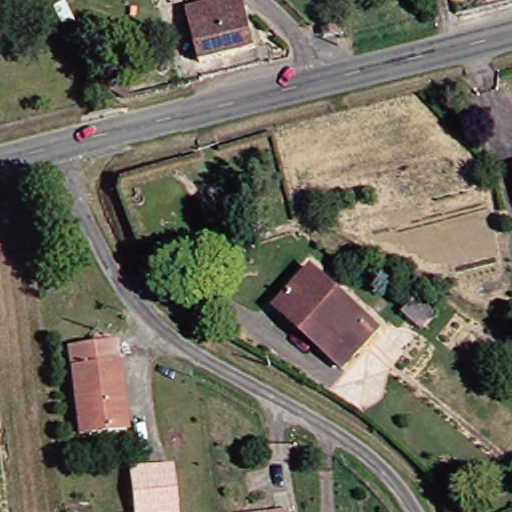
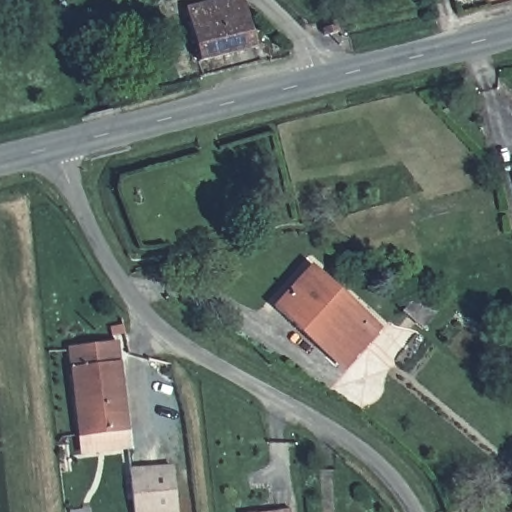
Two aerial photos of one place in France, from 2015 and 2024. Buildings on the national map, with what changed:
unchanged [(270,62),(196,79),(179,6),(205,0),(237,0),(261,24),(270,62)]
unchanged [(511,164),(512,164),(512,169),(511,164)]
unchanged [(273,311),(309,269),(376,326),(340,368),(273,311)]
unchanged [(421,333),(402,314),(416,295),(435,311),(421,333)]
unchanged [(65,357),(111,349),(125,426),(80,434),(65,357)]
unchanged [(128,512),(124,483),(123,475),(153,470),(163,468),(170,512),(128,512)]
unchanged [(285,512),(270,512),(285,511),(285,512)]

